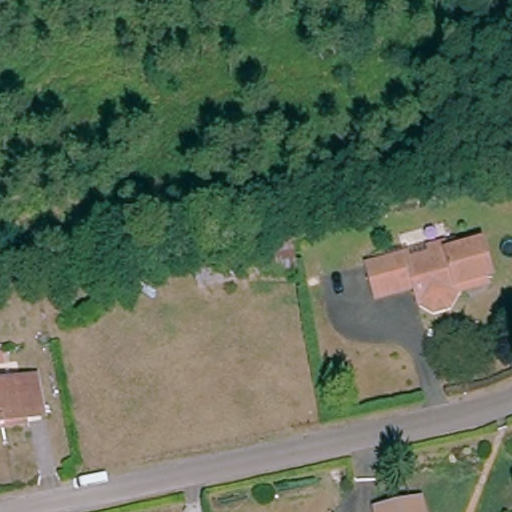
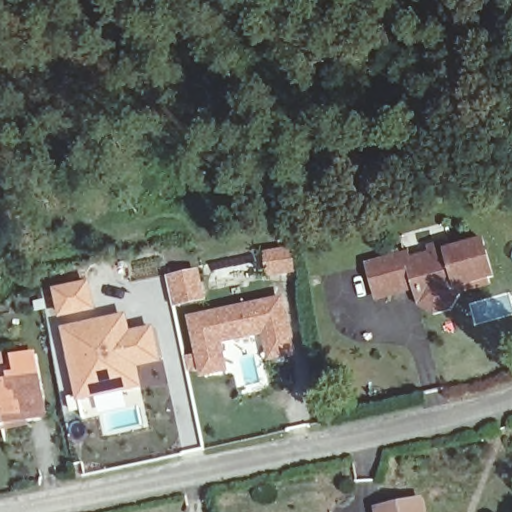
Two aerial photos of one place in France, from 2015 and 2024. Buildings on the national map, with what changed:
unchanged [(383,291),(377,260),(398,255),(412,252),(415,257),(432,253),(431,247),(447,242),(450,249),(482,240),(491,276),(461,283),(462,292),(452,301),(439,305),(427,298),(422,283),(407,286),(383,291)]
new [(292,252),(297,275),(270,280),(266,258),(292,252)]
new [(252,259),(255,274),(217,281),(214,267),(252,259)]
new [(198,275),(204,302),(173,308),(167,282),(198,275)]
new [(89,280),(96,311),(59,318),(52,288),(89,280)]
new [(282,304),(283,307),(294,359),(272,364),(266,335),(219,345),(225,373),(203,378),(192,322),(267,307),(282,304)]
new [(126,312),(131,330),(155,325),(162,365),(142,370),(147,387),(126,392),(122,379),(91,387),(92,396),(75,400),(61,327),(126,312)]
new [(5,365),(0,366),(0,343),(5,365)]
unchanged [(33,416),(7,423),(4,408),(0,385),(37,376),(40,390),(45,413),(33,416)]
unchanged [(4,408),(7,423),(0,425),(0,385),(4,408)]
unchanged [(421,501),(423,512),(378,512),(378,510),(421,501)]

